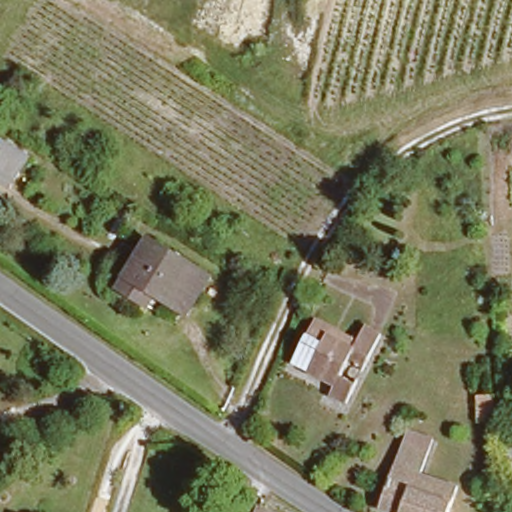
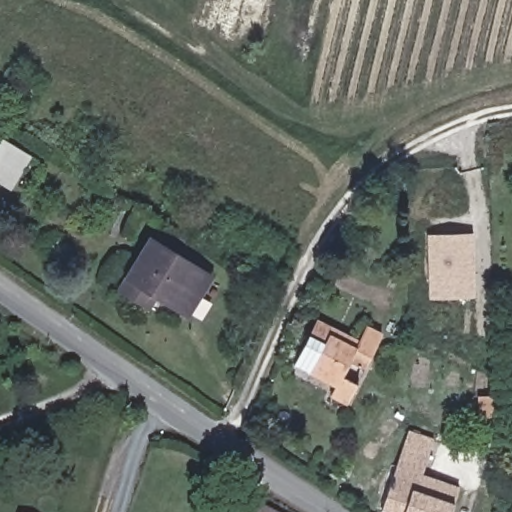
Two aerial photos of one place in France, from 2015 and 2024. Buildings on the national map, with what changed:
unchanged [(11,166),(0,183),(0,159),(11,166)]
new [(428,235),(474,234),(476,298),(430,300),(428,235)]
unchanged [(116,289),(125,276),(147,239),(205,275),(182,312),(152,292),(143,306),(116,289)]
unchanged [(379,333),(363,366),(347,358),(339,374),(355,381),(344,402),(327,393),(332,383),(292,363),(312,322),(330,330),(355,341),(363,325),(379,333)]
unchanged [(473,402),(474,428),(458,428),(457,403),(473,402)]
unchanged [(417,473),(454,487),(446,512),(386,512),(376,509),(402,430),(429,438),(417,473)]
unchanged [(512,493),(505,475),(512,472),(512,493)]
unchanged [(266,512),(258,512),(259,510),(266,512)]

